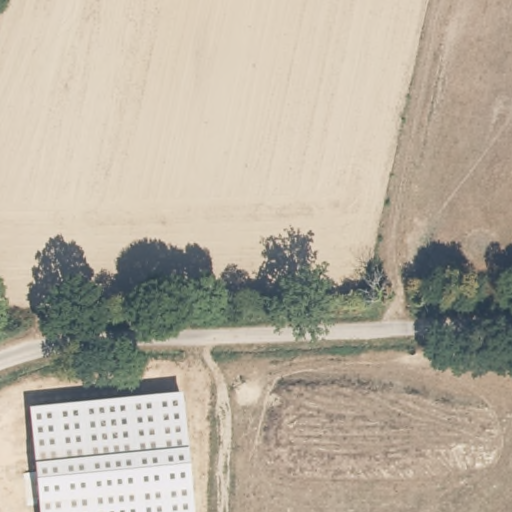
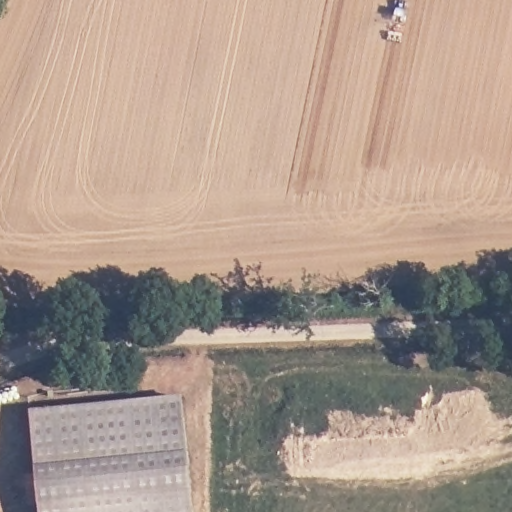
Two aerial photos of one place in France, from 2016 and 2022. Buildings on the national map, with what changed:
unchanged [(183,398),(193,512),(39,512),(30,412),(183,398)]

